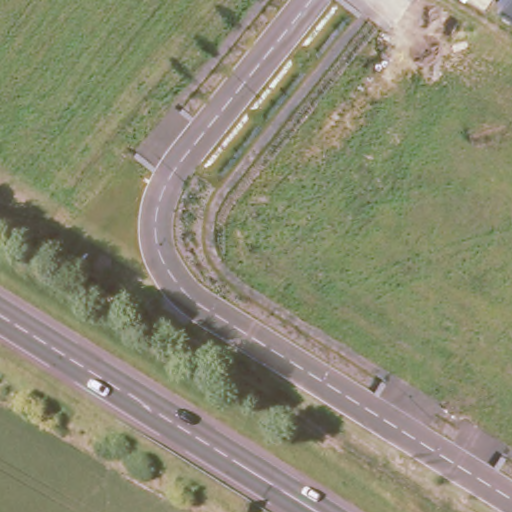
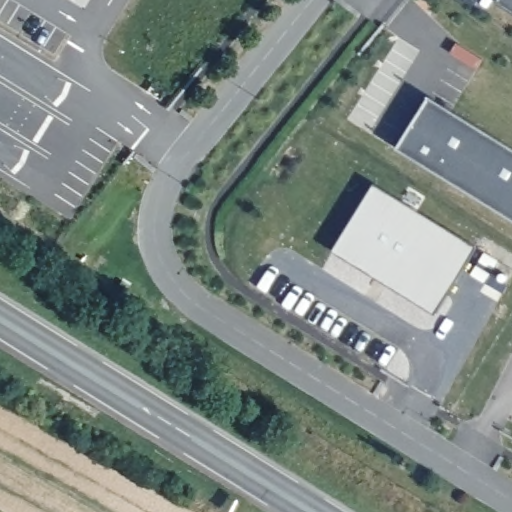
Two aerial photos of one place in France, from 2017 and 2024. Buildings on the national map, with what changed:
unchanged [(512,11),(499,2),(501,0),(512,0),(512,11)]
new [(512,222),(397,150),(429,97),(512,149),(512,222)]
new [(476,248),(434,316),(331,252),(374,184),(476,248)]

